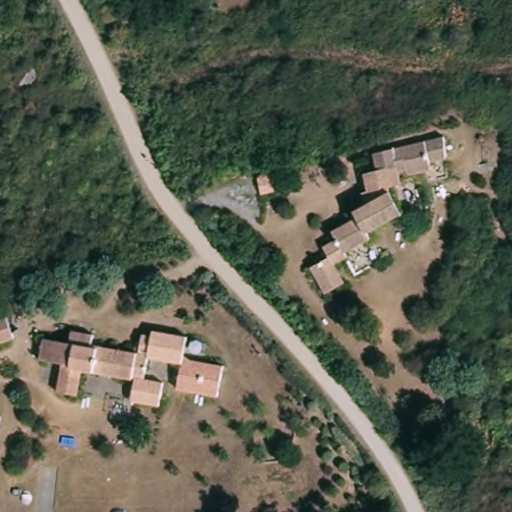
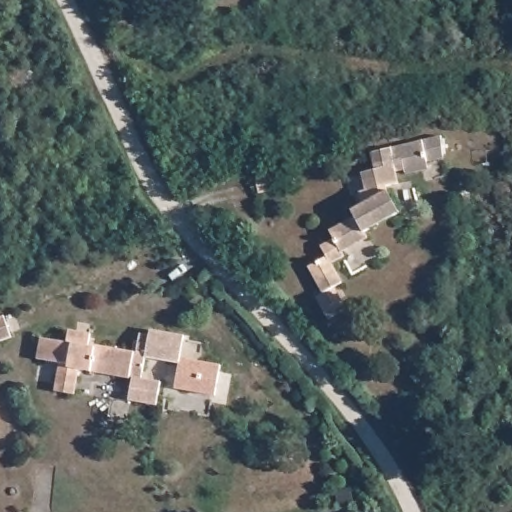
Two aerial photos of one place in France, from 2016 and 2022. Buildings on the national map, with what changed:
unchanged [(365,236),(368,242),(342,257),(345,261),(332,268),(342,287),(323,298),(308,271),(326,261),(320,251),(334,244),(329,235),(354,222),(351,215),(362,209),(360,196),(366,195),(361,178),(375,174),(371,156),(437,141),(439,164),(423,168),(424,176),(406,180),(405,176),(396,178),(399,188),(386,191),(388,196),(400,217),(365,236)]
unchanged [(255,177),(279,172),(282,188),(259,193),(255,177)]
unchanged [(11,337),(0,340),(0,316),(4,315),(11,337)]
unchanged [(131,402),(136,377),(131,376),(130,378),(79,369),(75,394),(55,391),(59,363),(36,359),(40,338),(67,342),(69,330),(91,334),(89,344),(133,351),(135,340),(139,341),(140,333),(150,335),(151,329),(185,335),(180,362),(176,361),(166,359),(146,356),(141,378),(163,382),(159,408),(131,402)]
unchanged [(219,397),(176,389),(180,362),(181,358),(223,364),(219,397)]

